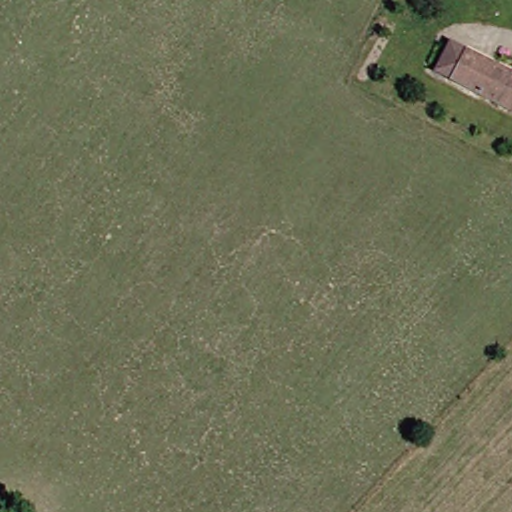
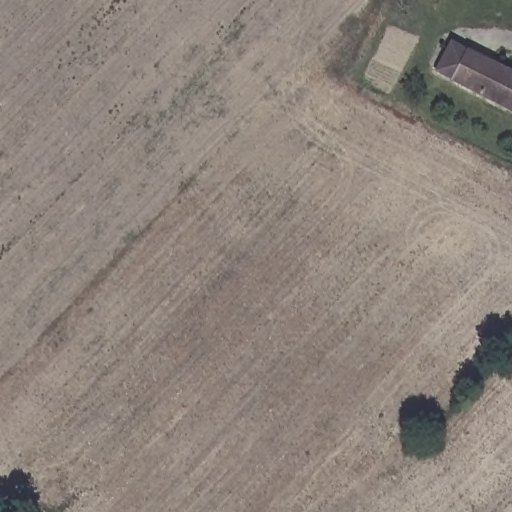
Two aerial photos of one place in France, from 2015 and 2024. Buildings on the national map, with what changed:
unchanged [(437,67),(451,40),(472,51),(512,73),(512,109),(458,79),(437,67)]

